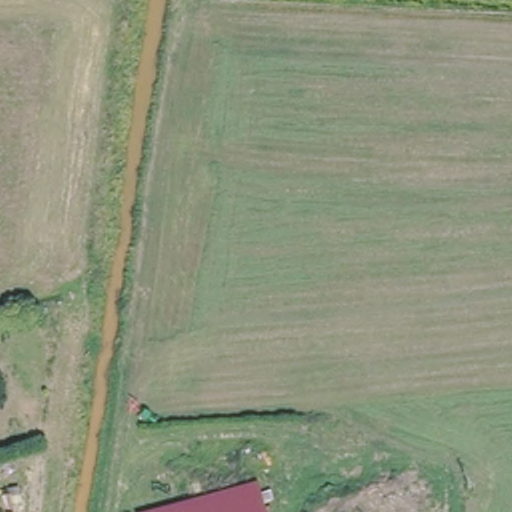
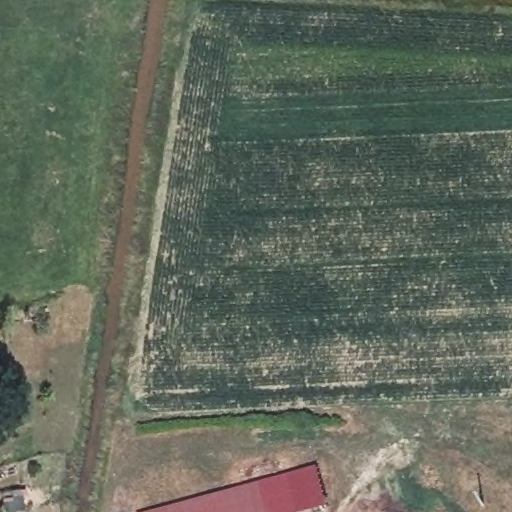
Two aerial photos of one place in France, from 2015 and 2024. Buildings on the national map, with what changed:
new [(311,512),(263,512),(256,487),(319,467),(329,507),(311,512)]
unchanged [(263,512),(169,512),(168,511),(256,487),(263,512)]
unchanged [(169,512),(163,512),(168,511),(169,512)]

